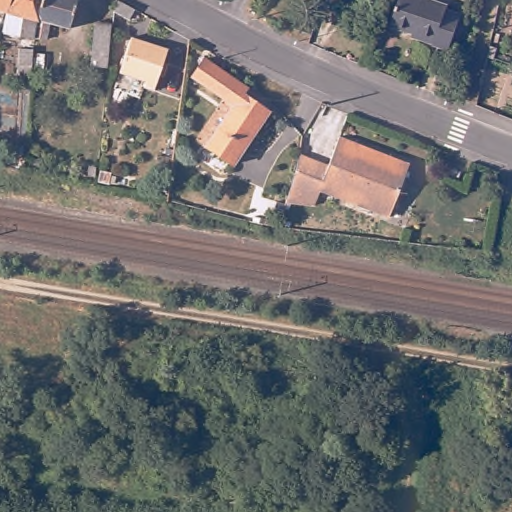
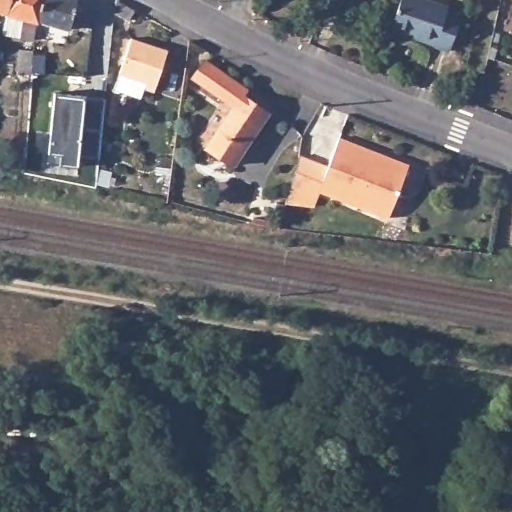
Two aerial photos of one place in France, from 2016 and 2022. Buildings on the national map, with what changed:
unchanged [(25,32),(30,14),(11,9),(0,5),(0,0),(47,0),(38,36),(25,32)]
unchanged [(81,0),(74,24),(56,20),(51,35),(38,36),(47,0),(81,0)]
unchanged [(435,0),(448,4),(448,7),(461,12),(449,49),(435,44),(436,40),(393,26),(400,0),(435,0)]
unchanged [(116,1),(135,11),(129,21),(115,13),(116,1)]
demolished [(99,43),(101,22),(117,22),(113,64),(98,63),(99,43)]
unchanged [(136,34),(173,46),(167,64),(172,66),(169,72),(165,70),(159,87),(149,84),(150,78),(125,69),(136,34)]
unchanged [(209,55),(251,86),(248,91),(274,110),(238,161),(211,142),(238,102),(197,72),(209,55)]
new [(78,154),(76,165),(48,161),(55,92),(84,96),(105,99),(99,157),(78,154)]
unchanged [(412,166),(389,219),(323,190),(317,205),(294,200),(288,199),(295,151),(307,155),(332,166),(344,137),(412,166)]
unchanged [(18,149),(22,149),(21,157),(17,156),(18,149)]
demolished [(89,167),(95,169),(94,177),(88,176),(89,167)]
unchanged [(194,195),(199,197),(198,202),(192,201),(194,195)]

